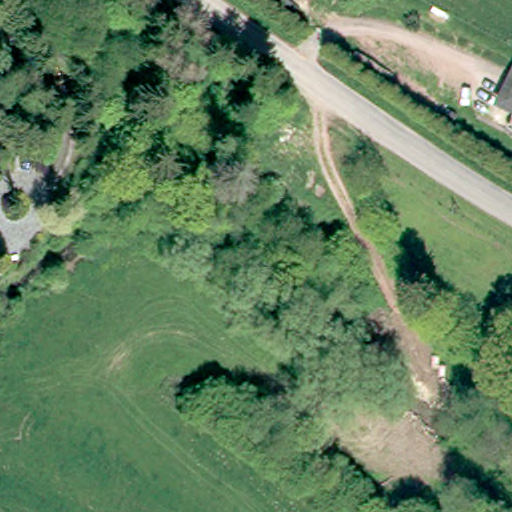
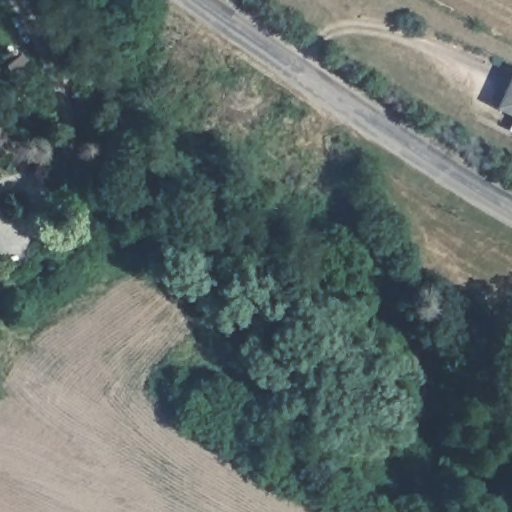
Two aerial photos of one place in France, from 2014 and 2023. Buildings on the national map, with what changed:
unchanged [(512,83),(512,106),(502,101),(512,83)]
unchanged [(512,109),(512,126),(505,122),(512,109)]

